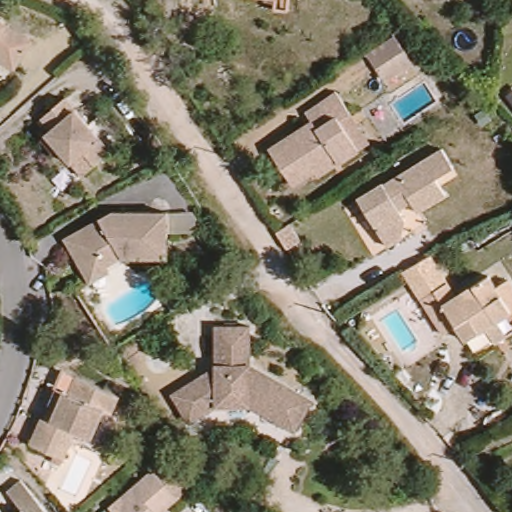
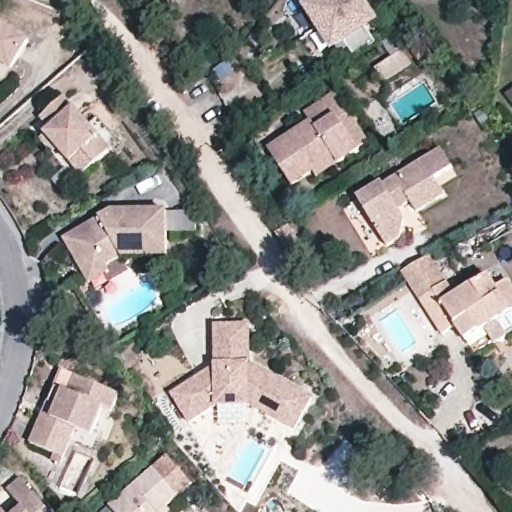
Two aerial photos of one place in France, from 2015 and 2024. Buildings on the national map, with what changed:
new [(358,2),(321,26),(318,27),(305,7),(313,2),(312,0),(357,0),(358,2)]
new [(358,2),(361,0),(375,21),(364,27),(375,44),(353,57),(342,41),(334,46),(321,26),(358,2)]
unchanged [(27,40),(13,65),(9,71),(0,66),(0,24),(27,40)]
unchanged [(413,61),(385,80),(376,65),(405,47),(413,61)]
unchanged [(310,174),(290,186),(266,150),(308,122),(302,114),(334,94),(347,114),(335,122),(356,151),(336,164),(313,179),(310,174)]
unchanged [(38,142),(45,137),(50,132),(40,120),(65,100),(86,128),(88,127),(98,119),(120,146),(110,154),(93,168),(82,156),(69,166),(57,152),(51,157),(38,142)]
unchanged [(345,204),(360,195),(385,180),(386,182),(445,147),(456,166),(461,174),(443,184),(448,192),(420,210),(426,221),(403,236),(390,243),(375,252),(345,204)]
unchanged [(88,285),(82,276),(63,242),(98,222),(109,216),(122,215),(165,215),(163,262),(120,260),(105,269),(108,275),(88,285)]
unchanged [(486,325),(468,337),(460,322),(445,331),(405,269),(431,252),(458,292),(491,272),(498,283),(511,276),(512,278),(512,308),(499,317),(510,333),(497,341),(486,325)]
unchanged [(249,367),(309,403),(290,433),(246,407),(213,405),(191,422),(174,395),(215,365),(218,326),(252,329),(249,367)]
unchanged [(76,381),(118,398),(110,417),(102,413),(90,442),(73,435),(61,462),(29,447),(42,417),(53,391),(62,395),(68,397),(76,381)]
unchanged [(146,472),(160,460),(185,488),(171,501),(161,510),(162,512),(105,512),(103,510),(146,472)]
unchanged [(48,512),(14,512),(20,507),(8,494),(22,482),(48,512)]
unchanged [(1,512),(0,512),(0,511),(1,512)]

